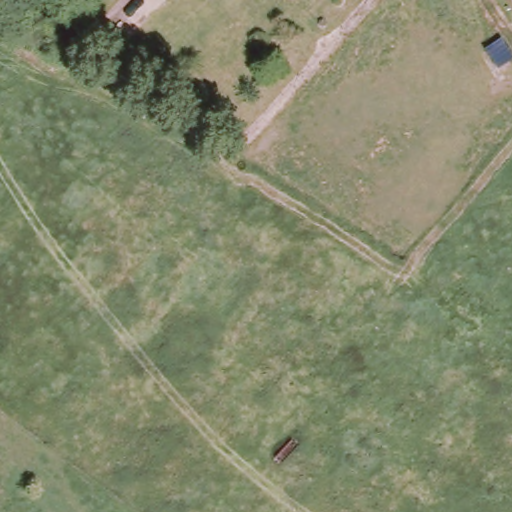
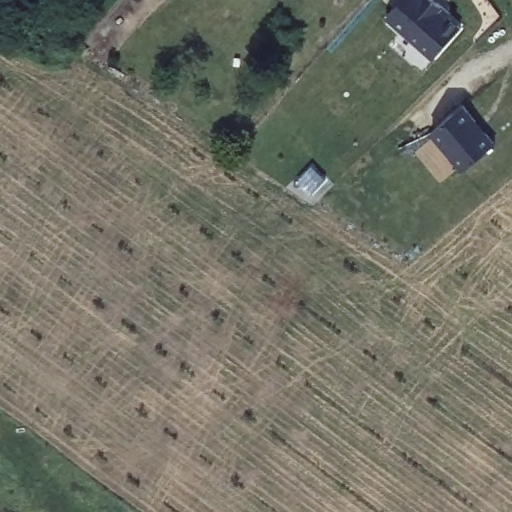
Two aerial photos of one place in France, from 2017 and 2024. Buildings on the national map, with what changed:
new [(454,20),(449,26),(457,33),(434,60),(387,19),(404,0),(431,0),(454,20)]
new [(497,144),(464,172),(432,134),(466,106),(497,144)]

